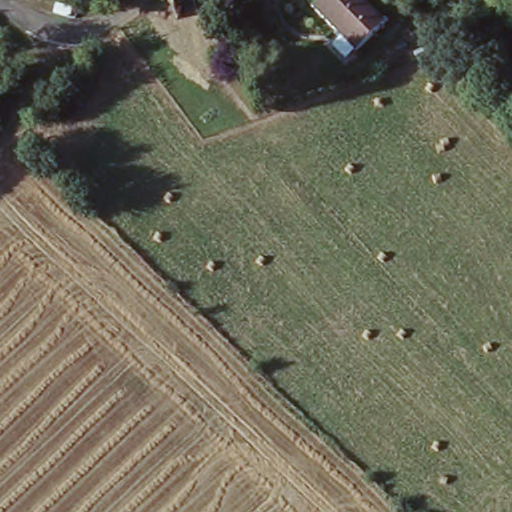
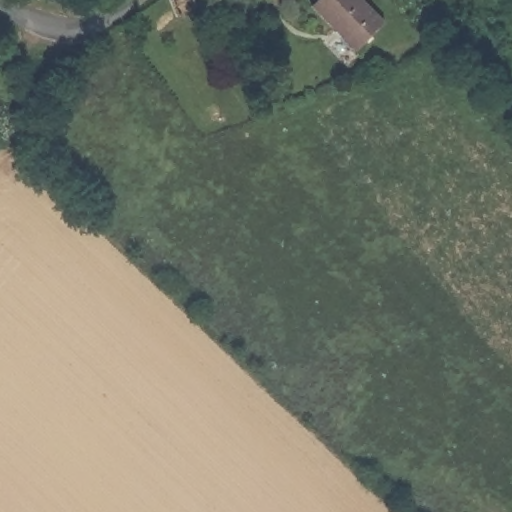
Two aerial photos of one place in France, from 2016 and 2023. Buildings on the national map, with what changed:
unchanged [(366,0),(388,22),(358,50),(313,3),(317,0),(366,0)]

